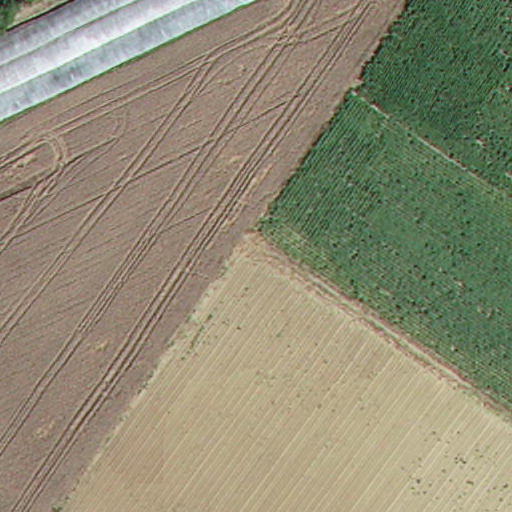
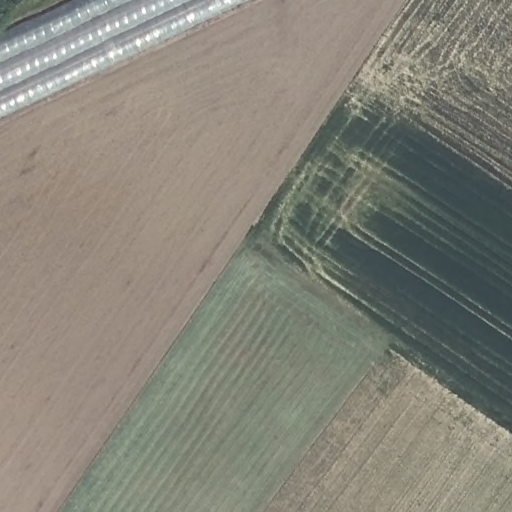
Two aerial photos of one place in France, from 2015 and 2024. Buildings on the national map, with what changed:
unchanged [(0,111),(0,35),(73,0),(230,0),(0,111)]

